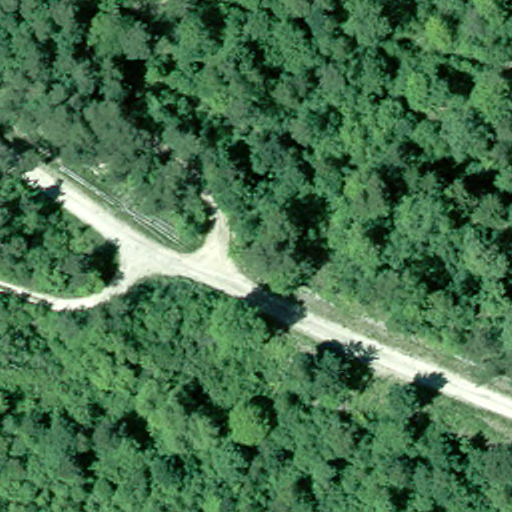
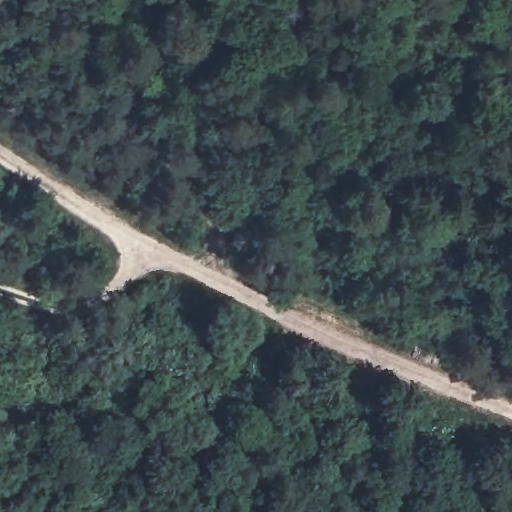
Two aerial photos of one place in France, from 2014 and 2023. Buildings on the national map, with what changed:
unchanged [(210,356),(206,364),(196,359),(201,352),(189,347),(205,320),(232,334),(218,361),(210,356)]

